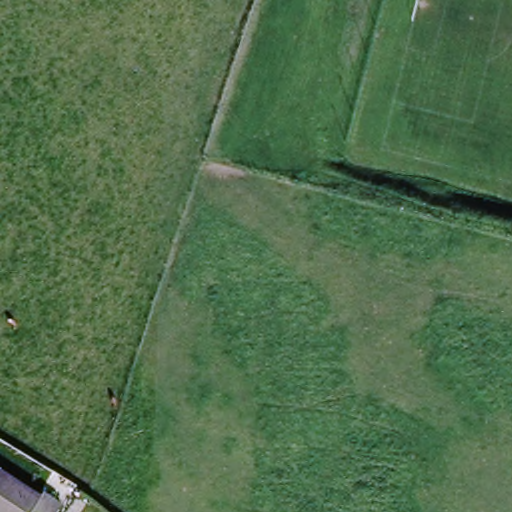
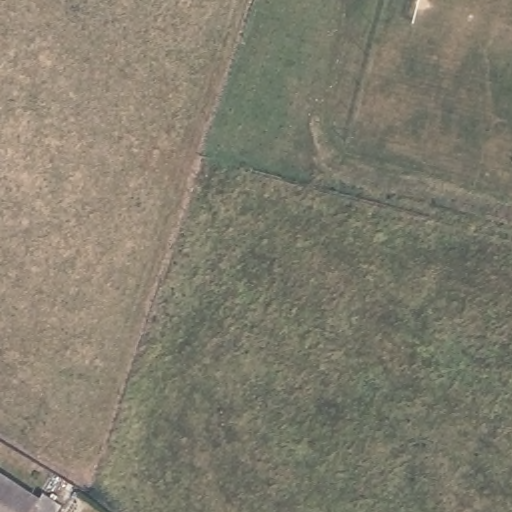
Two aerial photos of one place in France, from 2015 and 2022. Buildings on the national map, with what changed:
unchanged [(72,494),(61,512),(0,512),(0,481),(0,469),(5,473),(46,498),(55,483),(72,494)]

